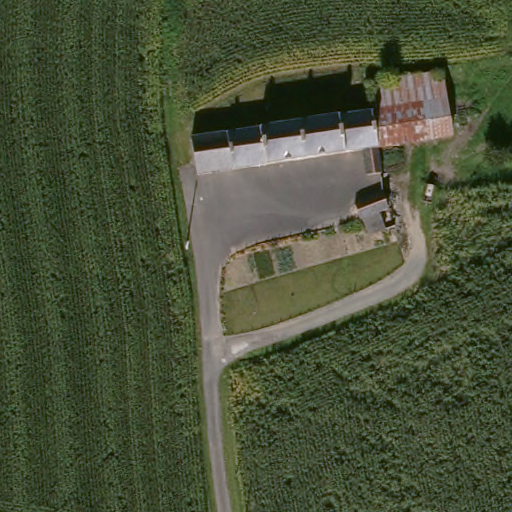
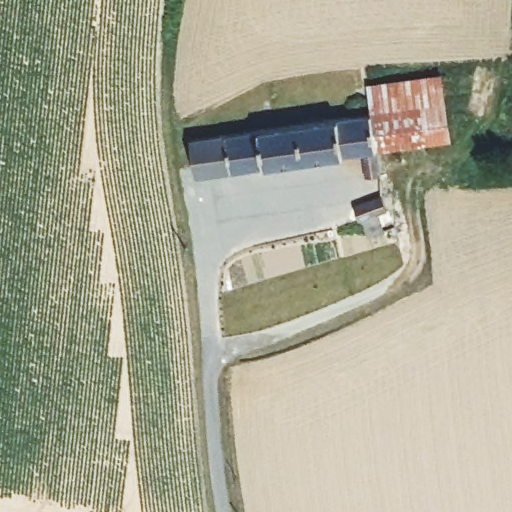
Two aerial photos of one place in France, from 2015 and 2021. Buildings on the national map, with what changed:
unchanged [(369,87),(444,80),(452,144),(432,145),(425,107),(373,115),(369,87)]
unchanged [(432,145),(379,151),(373,115),(425,107),(432,145)]
unchanged [(379,151),(383,175),(368,177),(363,155),(199,175),(194,135),(373,115),(379,151)]
unchanged [(359,221),(354,205),(381,195),(388,210),(359,221)]

